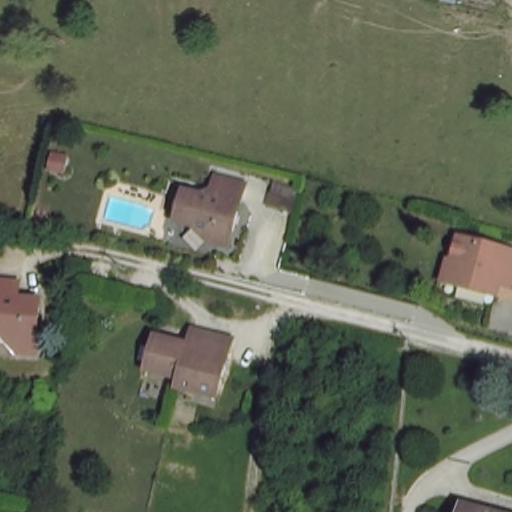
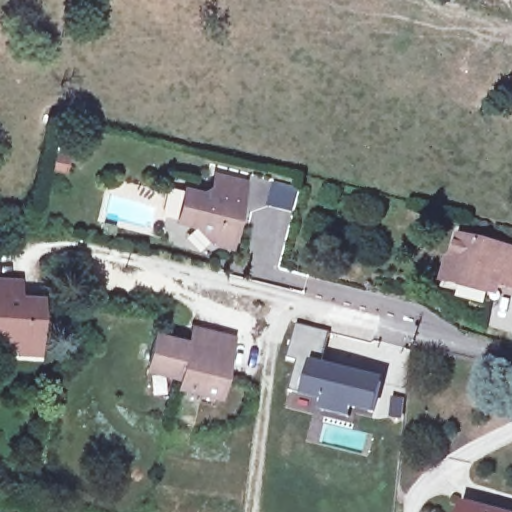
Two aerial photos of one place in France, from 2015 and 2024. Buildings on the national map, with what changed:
unchanged [(235,247),(216,243),(200,226),(182,221),(190,189),(217,195),(222,176),(251,183),(235,247)]
unchanged [(495,292),(455,282),(445,278),(450,260),(453,261),(459,236),(512,249),(512,286),(497,282),(495,292)]
unchanged [(32,353),(15,352),(0,335),(0,281),(15,282),(13,298),(36,300),(32,353)]
new [(296,326),(328,333),(320,364),(383,380),(375,416),(353,411),(351,421),(320,413),(321,402),(290,394),(298,361),(288,359),(296,326)]
unchanged [(156,335),(190,344),(194,329),(233,339),(218,397),(179,387),(181,378),(147,370),(156,335)]
new [(403,418),(394,418),(395,401),(405,402),(403,418)]
unchanged [(487,512),(462,512),(464,506),(487,512)]

